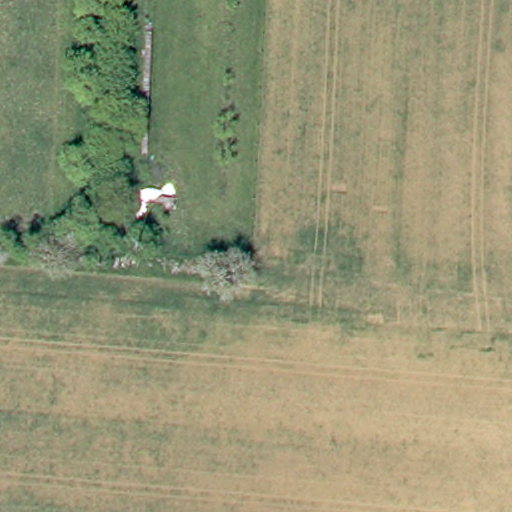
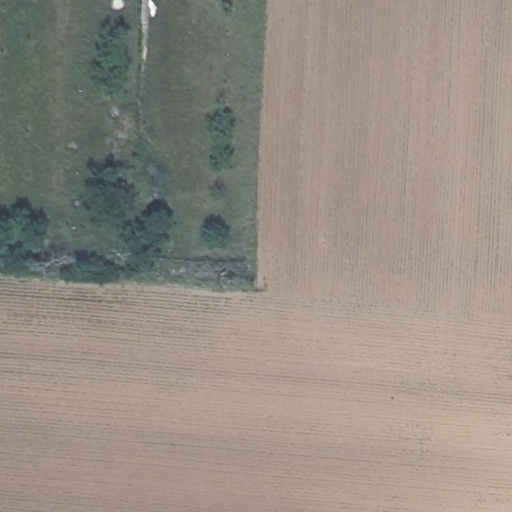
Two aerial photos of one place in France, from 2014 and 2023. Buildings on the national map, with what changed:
[]

